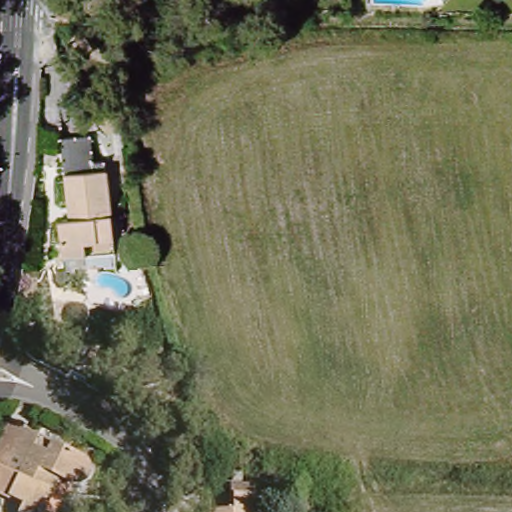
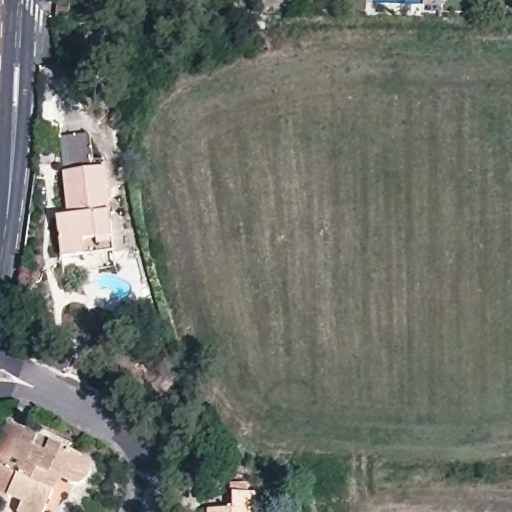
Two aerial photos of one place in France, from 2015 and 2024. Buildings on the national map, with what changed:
unchanged [(71,2),(70,26),(55,24),(56,0),(71,2)]
unchanged [(95,252),(62,256),(58,220),(68,219),(67,208),(60,137),(92,134),(94,160),(104,159),(105,169),(112,237),(113,250),(95,252)]
unchanged [(55,373),(40,365),(45,355),(60,347),(74,353),(64,377),(55,373)]
unchanged [(19,502),(23,493),(10,487),(9,490),(0,485),(0,433),(9,415),(73,445),(83,449),(87,452),(89,457),(90,462),(89,468),(87,472),(83,475),(78,476),(73,476),(60,470),(54,483),(41,512),(25,512),(19,502)]
unchanged [(208,511),(233,510),(233,495),(256,495),(256,510),(264,510),(264,512),(208,512),(208,511)]

